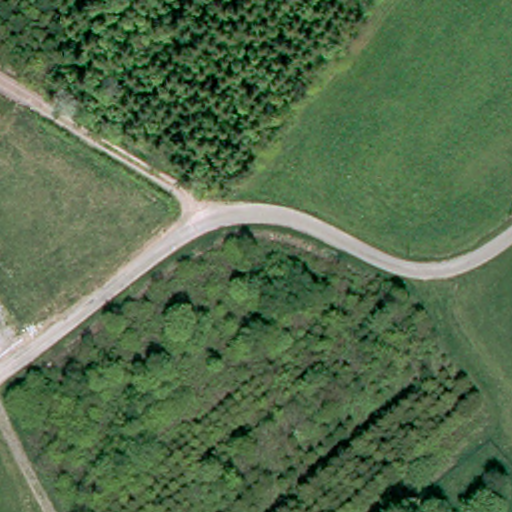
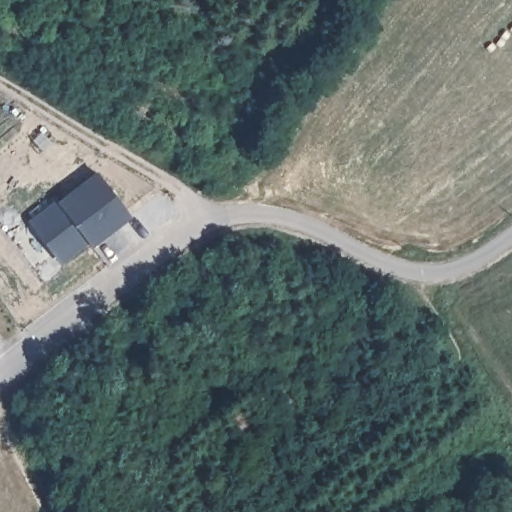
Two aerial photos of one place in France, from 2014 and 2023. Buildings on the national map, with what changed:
new [(58,198),(97,169),(132,215),(92,246),(88,241),(61,263),(28,218),(58,198)]

